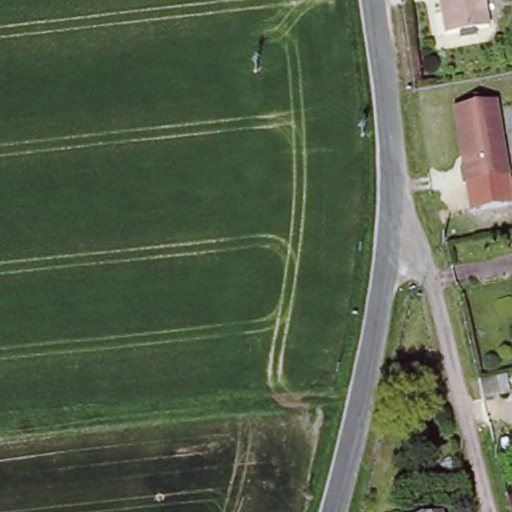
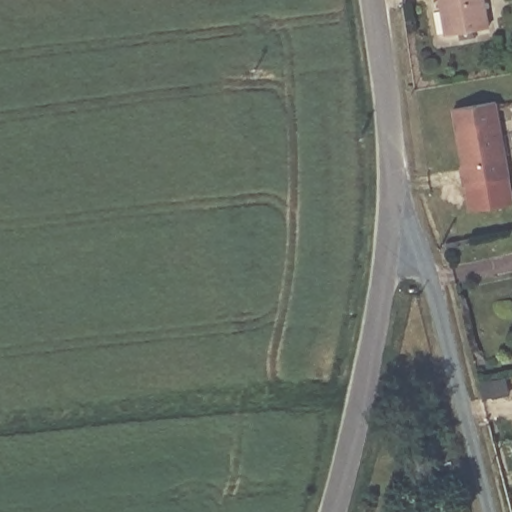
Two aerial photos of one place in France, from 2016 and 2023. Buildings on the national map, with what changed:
unchanged [(449,31),(444,0),(489,0),(494,24),(449,31)]
unchanged [(472,198),(462,169),(464,168),(453,108),(495,101),(512,192),(472,198)]

